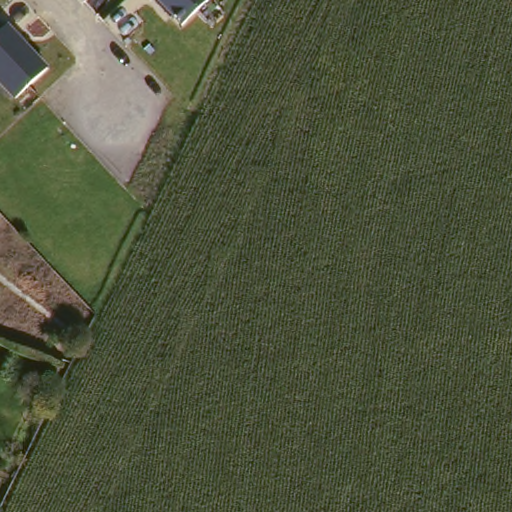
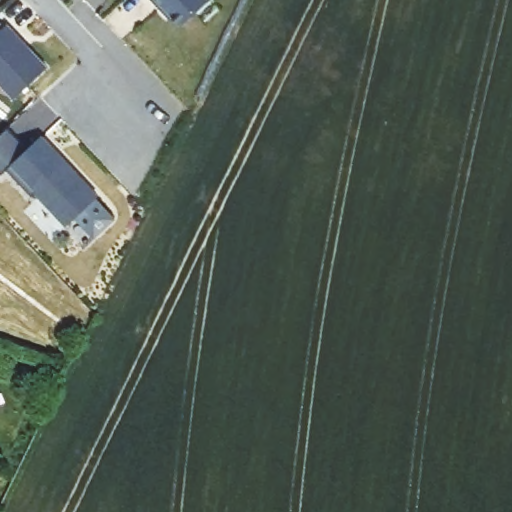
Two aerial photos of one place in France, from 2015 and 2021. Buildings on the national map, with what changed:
unchanged [(157,0),(211,0),(183,25),(157,0)]
unchanged [(0,81),(0,21),(5,26),(9,23),(49,69),(16,98),(0,81)]
new [(26,144),(34,137),(37,140),(43,135),(98,196),(95,198),(113,218),(94,236),(76,216),(67,225),(36,192),(31,196),(6,169),(1,175),(0,174),(0,135),(10,126),(26,144)]

